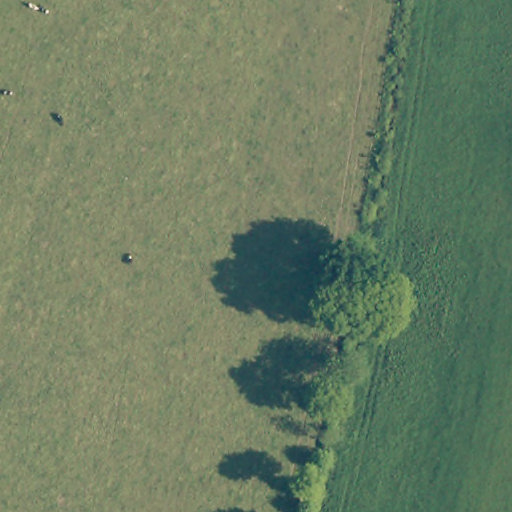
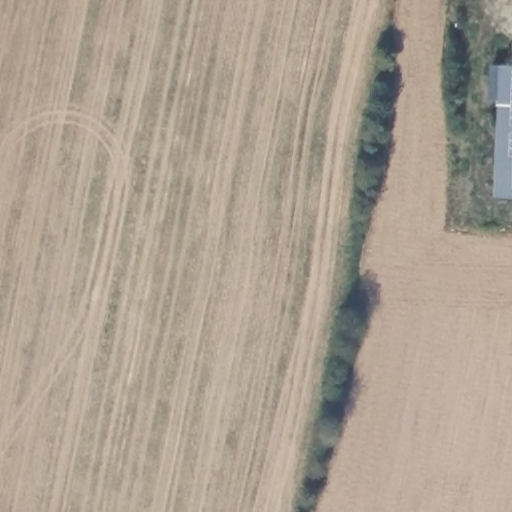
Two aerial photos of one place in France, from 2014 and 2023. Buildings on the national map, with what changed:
new [(499,101),(488,101),(490,66),(502,65),(512,66),(512,199),(495,198),(499,101)]

